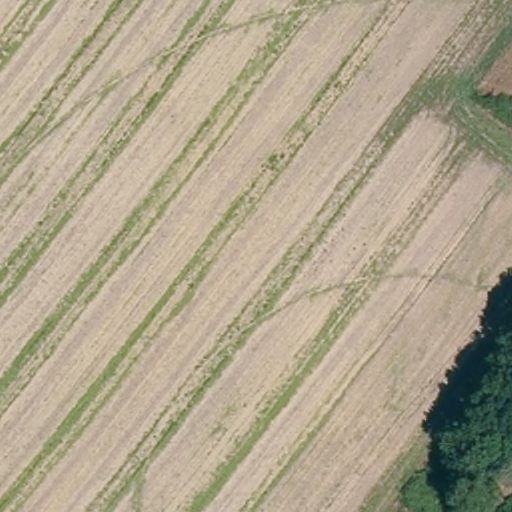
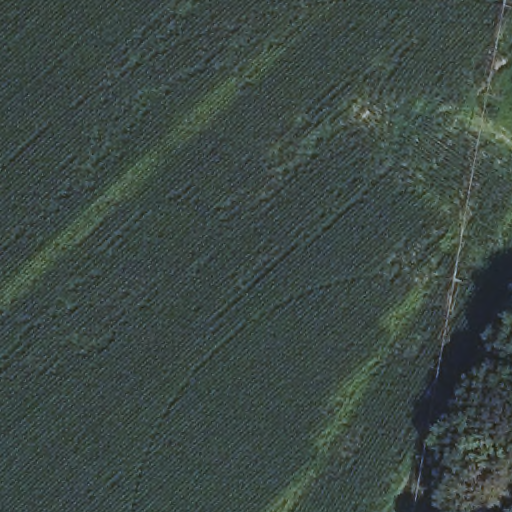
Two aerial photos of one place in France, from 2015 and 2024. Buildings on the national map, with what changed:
[]

